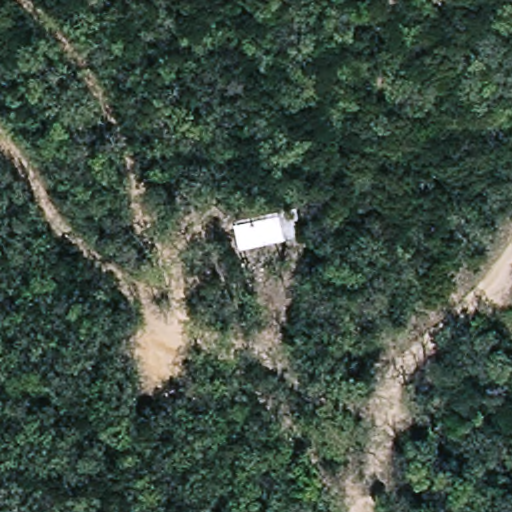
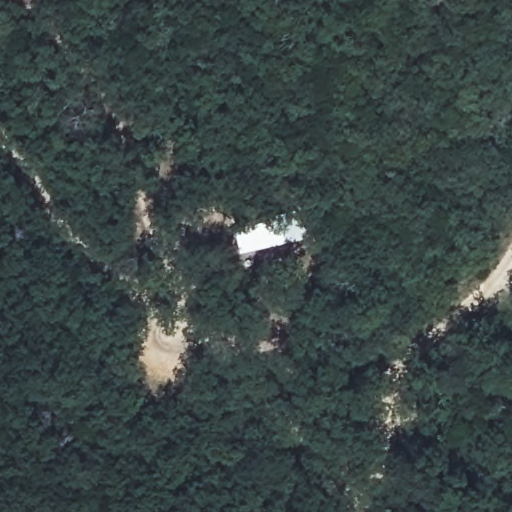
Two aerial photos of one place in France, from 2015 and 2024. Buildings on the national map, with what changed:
unchanged [(233,226),(301,213),(308,236),(238,253),(233,226)]

